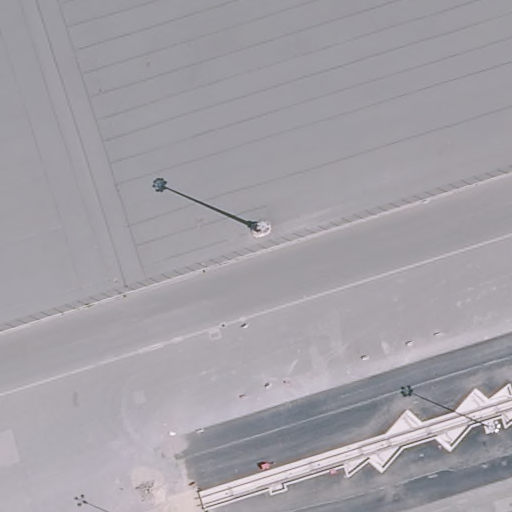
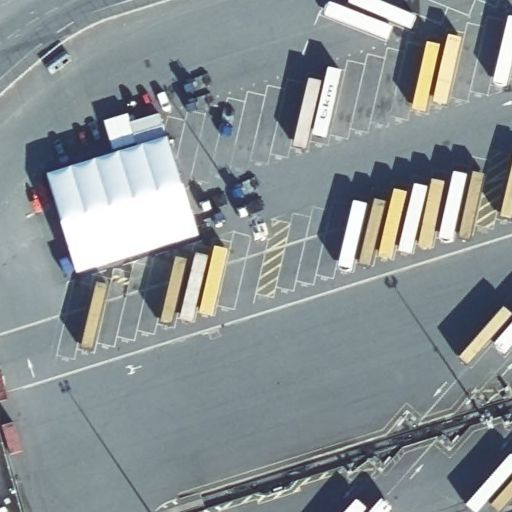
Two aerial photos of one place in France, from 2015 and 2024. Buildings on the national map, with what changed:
new [(135,147),(127,122),(160,115),(199,239),(71,277),(45,172),(135,147)]

